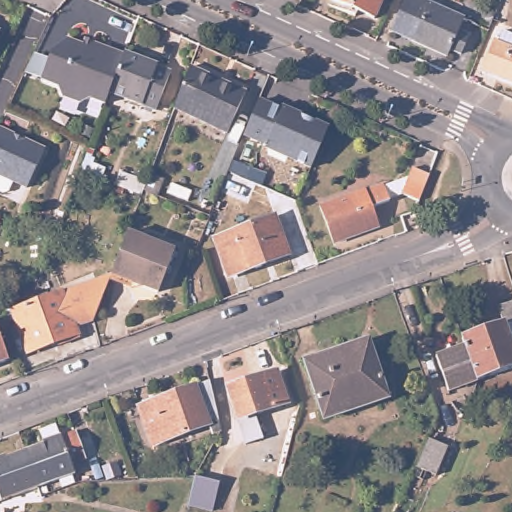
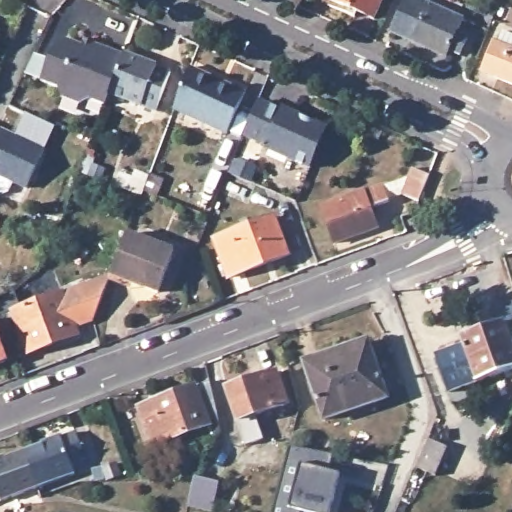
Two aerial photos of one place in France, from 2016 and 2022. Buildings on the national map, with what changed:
unchanged [(379,13),(349,0),(384,0),(379,13)]
unchanged [(404,29),(416,0),(432,0),(431,4),(473,21),(468,34),(477,38),(469,56),(459,52),(457,60),(422,44),(401,35),(404,29)]
unchanged [(481,70),(493,40),(496,41),(499,30),(512,35),(512,82),(481,70)]
unchanged [(106,90),(103,100),(87,94),(77,99),(59,92),(55,81),(39,75),(49,47),(63,35),(79,41),(81,35),(89,38),(88,39),(121,53),(106,90)]
unchanged [(121,53),(123,50),(154,63),(152,66),(166,72),(149,109),(106,90),(121,53)]
unchanged [(194,63),(249,88),(232,130),(178,107),(194,63)]
unchanged [(280,109),(282,107),(302,119),(304,125),(313,121),(326,127),(310,164),(309,166),(264,147),(265,144),(243,134),(258,99),(280,109)]
unchanged [(372,126),(381,130),(378,138),(369,135),(372,126)]
unchanged [(24,184),(9,178),(4,188),(0,190),(0,127),(39,145),(24,184)]
unchanged [(364,194),(369,192),(384,187),(384,189),(409,180),(413,170),(429,177),(419,203),(402,196),(389,201),(389,203),(371,209),(378,229),(335,244),(323,208),(364,194)]
unchanged [(120,172),(143,180),(140,189),(139,191),(116,183),(120,172)]
unchanged [(274,215),(288,253),(227,275),(213,236),(274,215)]
unchanged [(128,228),(173,245),(158,287),(113,270),(128,228)]
unchanged [(59,344),(59,341),(29,352),(13,310),(112,271),(94,318),(78,324),(79,328),(82,335),(59,344)]
unchanged [(477,381),(464,345),(462,337),(504,323),(499,307),(512,303),(512,370),(477,381)]
unchanged [(0,364),(0,323),(13,359),(0,364)]
unchanged [(369,341),(379,368),(389,397),(324,418),(305,361),(361,343),(369,341)]
unchanged [(477,381),(448,392),(436,355),(464,345),(477,381)]
unchanged [(279,370),(289,403),(257,414),(264,438),(247,444),(228,387),(279,370)]
unchanged [(225,422),(156,447),(143,407),(216,381),(225,422)]
unchanged [(43,446),(41,443),(61,436),(62,438),(76,433),(86,460),(71,465),(75,475),(39,488),(26,451),(43,446)]
unchanged [(439,441),(449,446),(437,474),(426,469),(439,441)]
new [(302,512),(273,512),(289,446),(334,455),(331,473),(340,475),(334,501),(331,512),(306,512),(302,511),(302,512)]
unchanged [(8,458),(26,451),(39,488),(1,501),(0,499),(0,458),(7,455),(8,458)]
unchanged [(194,477),(219,482),(212,511),(188,505),(194,477)]

